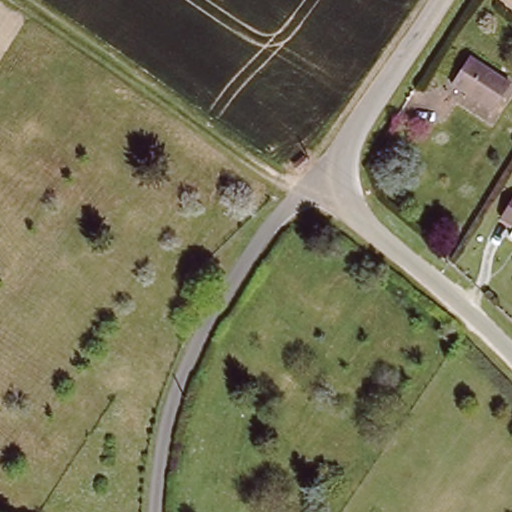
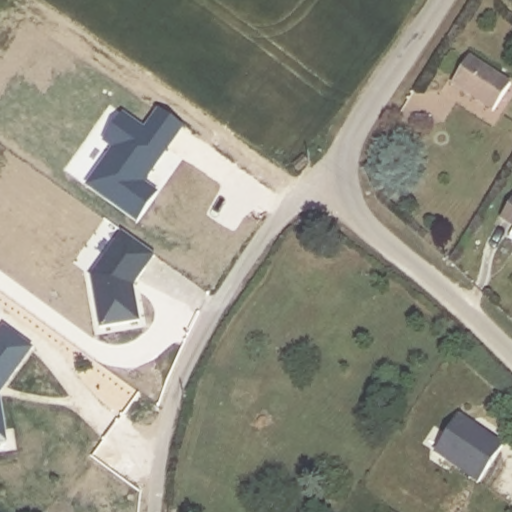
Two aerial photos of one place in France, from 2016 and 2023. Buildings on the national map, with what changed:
unchanged [(472,54),(511,82),(495,106),(456,78),(472,54)]
new [(115,147),(104,139),(123,112),(146,127),(160,107),(184,122),(170,145),(167,144),(160,153),(160,158),(152,169),(149,171),(143,180),(160,191),(140,220),(109,198),(90,184),(98,172),(115,147)]
unchanged [(509,212),(512,208),(512,215),(509,212)]
new [(125,230),(158,252),(140,278),(138,276),(135,281),(136,283),(143,318),(104,326),(94,274),(125,230)]
new [(0,340),(8,329),(34,347),(1,393),(5,417),(9,438),(0,440),(0,340)]
new [(435,452),(459,415),(504,443),(480,481),(435,452)]

